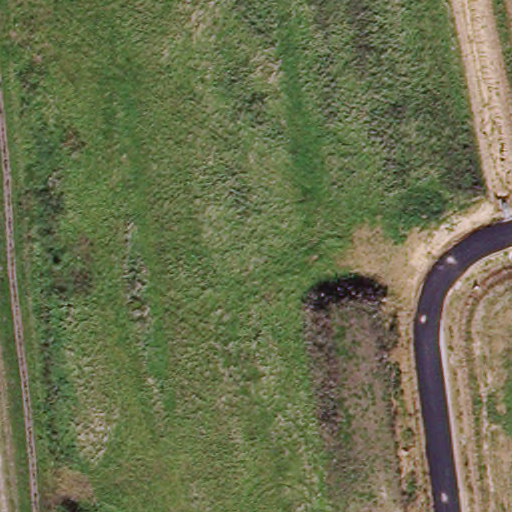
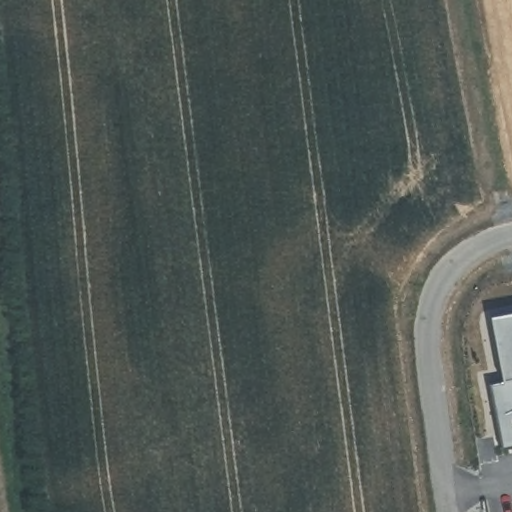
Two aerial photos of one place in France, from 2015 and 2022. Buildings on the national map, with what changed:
new [(491,386),(505,383),(493,320),(512,316),(512,447),(504,449),(491,386)]

